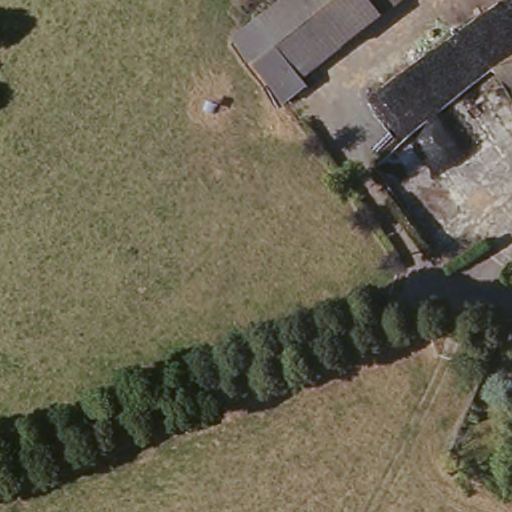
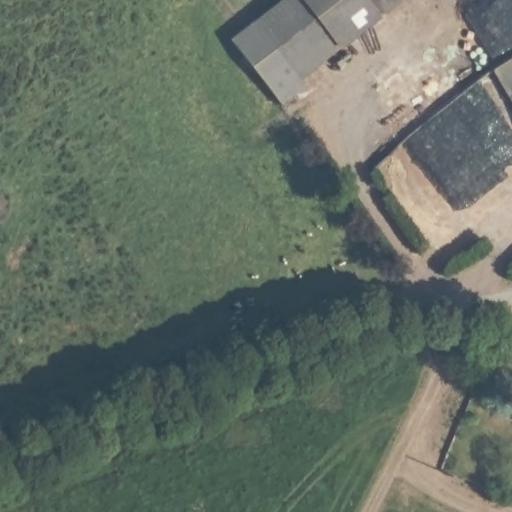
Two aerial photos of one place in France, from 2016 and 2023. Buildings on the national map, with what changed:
unchanged [(306,88),(282,106),(230,40),(281,0),(402,0),(300,80),(306,88)]
unchanged [(512,57),(512,100),(493,69),(512,57)]

